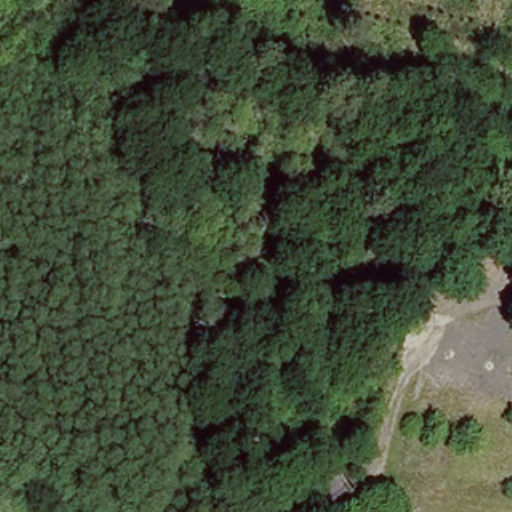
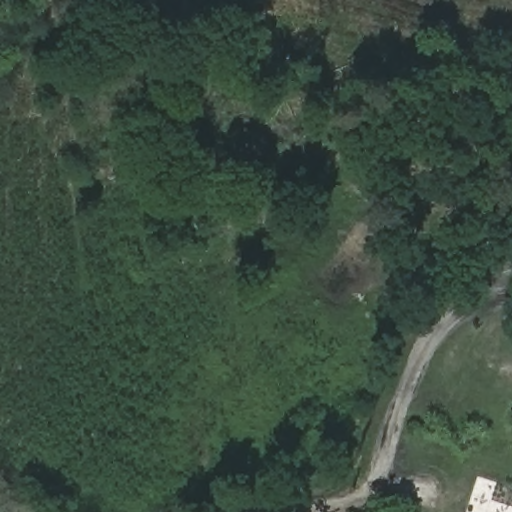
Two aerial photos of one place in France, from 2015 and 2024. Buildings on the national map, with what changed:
unchanged [(91,512),(92,487),(155,490),(153,512),(91,512)]

